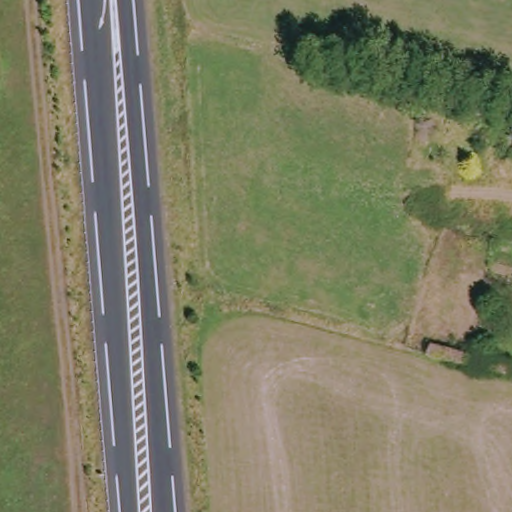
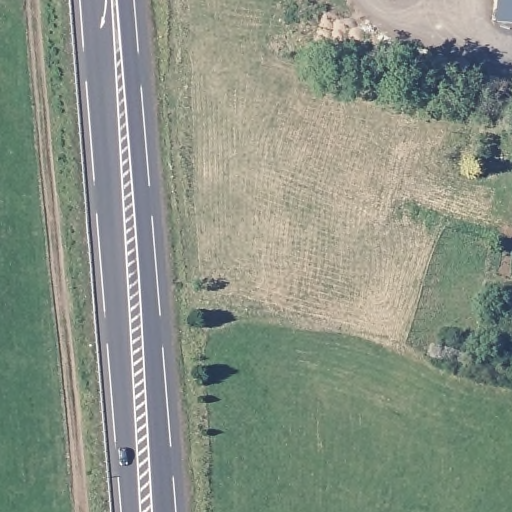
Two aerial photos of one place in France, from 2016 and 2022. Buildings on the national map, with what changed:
new [(495,0),(512,0),(512,24),(493,22),(495,0)]
unchanged [(512,133),(512,135),(511,135),(512,133)]

